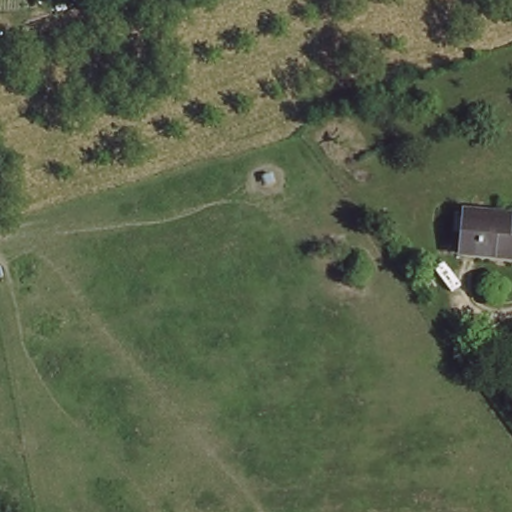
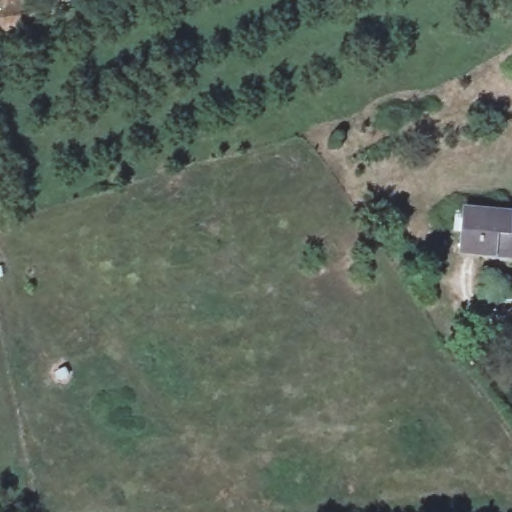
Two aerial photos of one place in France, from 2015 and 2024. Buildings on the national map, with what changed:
unchanged [(511,265),(448,260),(450,235),(442,235),(443,214),(453,214),(512,219),(512,256),(511,265)]

